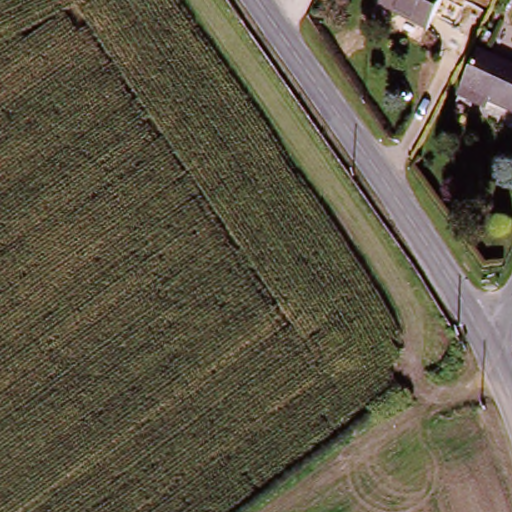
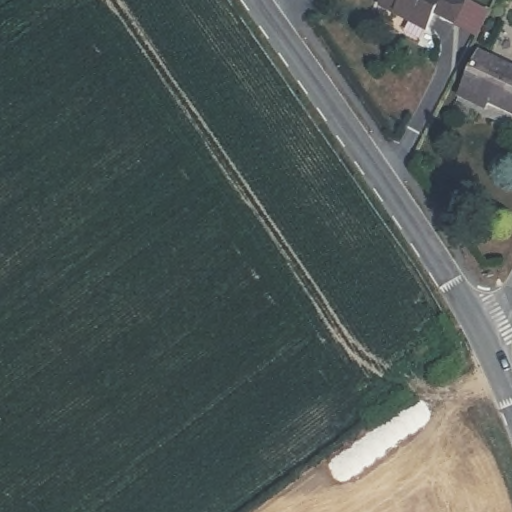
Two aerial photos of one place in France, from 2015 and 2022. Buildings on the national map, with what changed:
unchanged [(435,0),(421,26),(376,2),(378,0),(435,0)]
unchanged [(484,54),(512,68),(512,114),(465,91),(484,54)]

